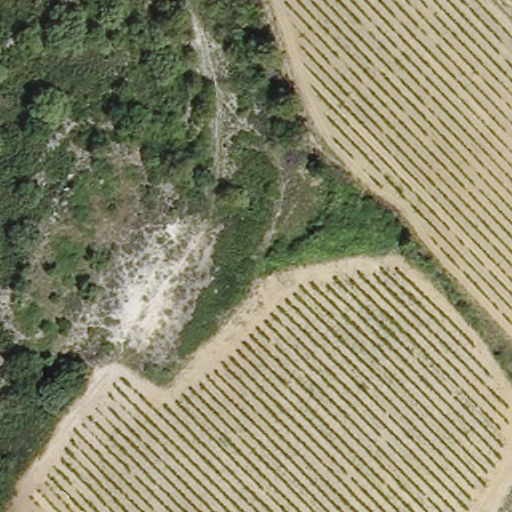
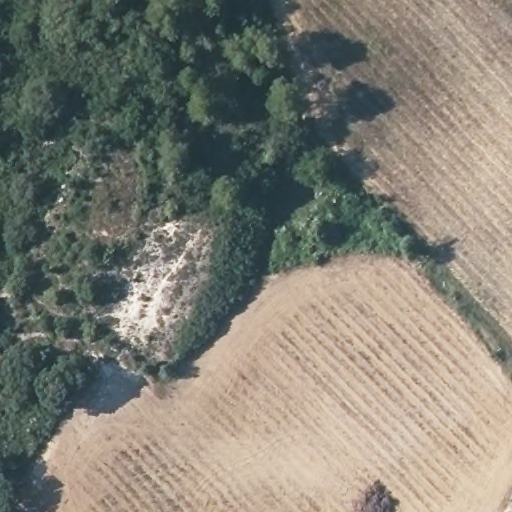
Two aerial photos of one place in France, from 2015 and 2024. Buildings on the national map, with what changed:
unchanged [(0,369),(0,355),(8,362),(0,369)]

